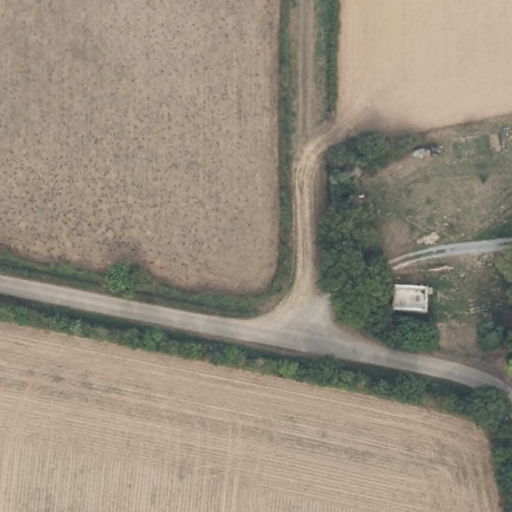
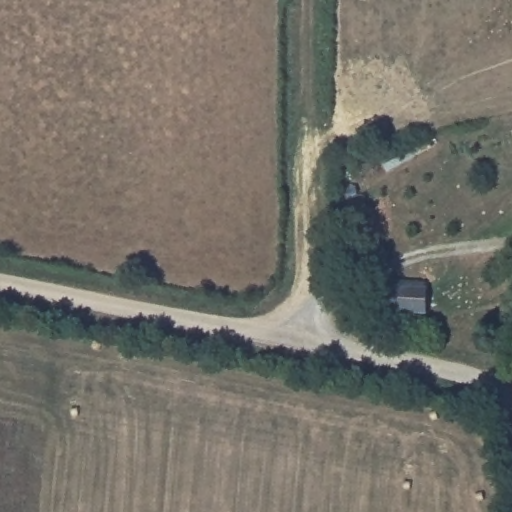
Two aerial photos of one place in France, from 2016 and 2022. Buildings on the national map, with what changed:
unchanged [(426,318),(395,314),(397,290),(429,293),(426,318)]

